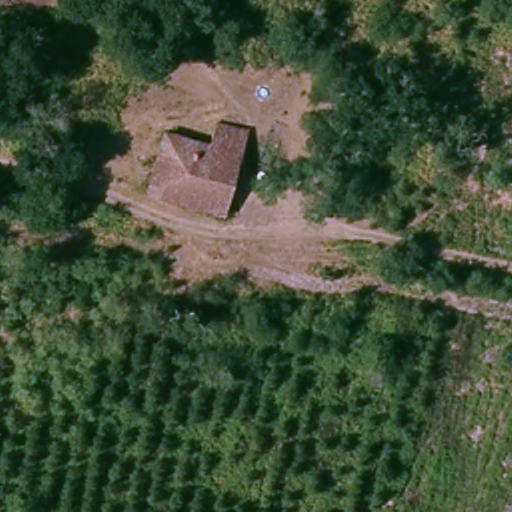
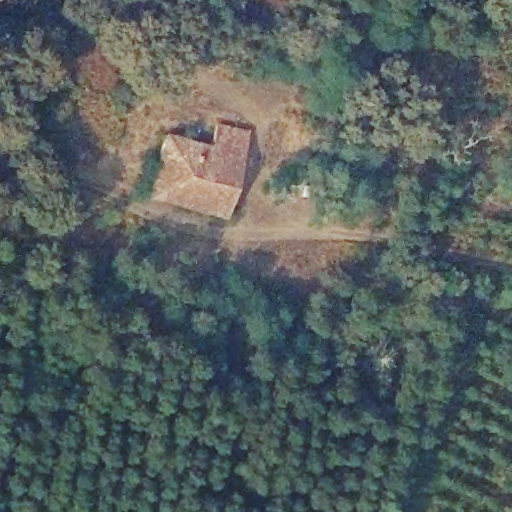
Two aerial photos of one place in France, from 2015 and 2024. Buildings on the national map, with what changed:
unchanged [(0,7),(0,0),(55,0),(55,5),(0,7)]
unchanged [(213,139),(217,121),(249,127),(228,217),(147,194),(168,128),(213,139)]

